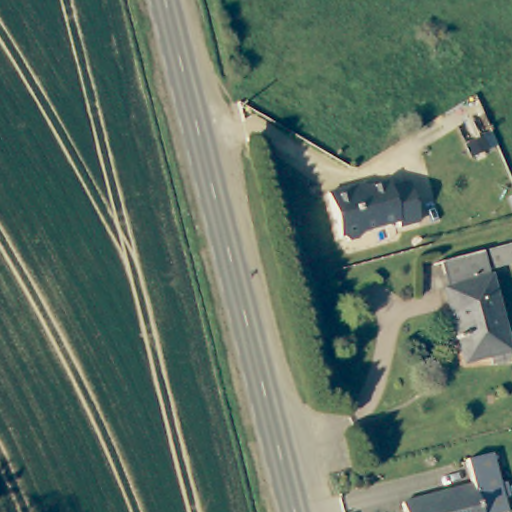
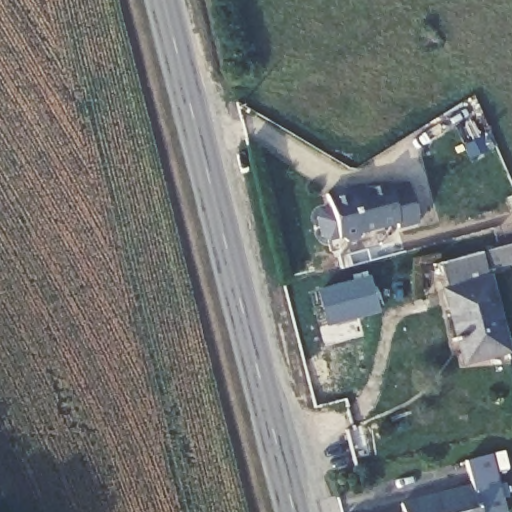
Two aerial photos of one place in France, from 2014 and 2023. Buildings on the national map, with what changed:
unchanged [(418,219),(400,223),(399,220),(363,230),(358,237),(345,239),(341,235),(336,236),(325,191),(349,185),(350,190),(387,180),(387,184),(408,179),(418,219)]
unchanged [(503,353),(481,359),(482,361),(462,366),(457,346),(453,346),(440,296),(444,296),(435,266),(478,256),(503,353)]
new [(369,276),(379,312),(325,327),(314,289),(369,276)]
unchanged [(404,512),(401,498),(471,481),(464,457),(491,450),(505,512),(404,512)]

